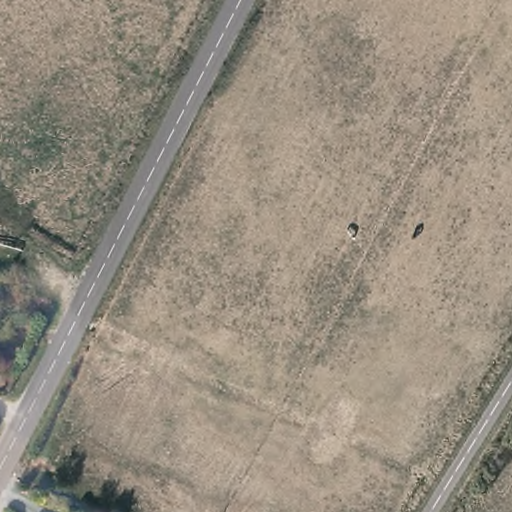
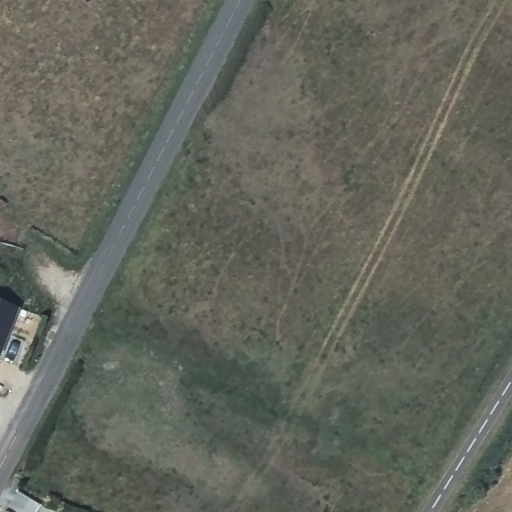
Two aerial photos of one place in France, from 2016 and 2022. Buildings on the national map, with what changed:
new [(0,352),(0,300),(17,306),(0,352)]

